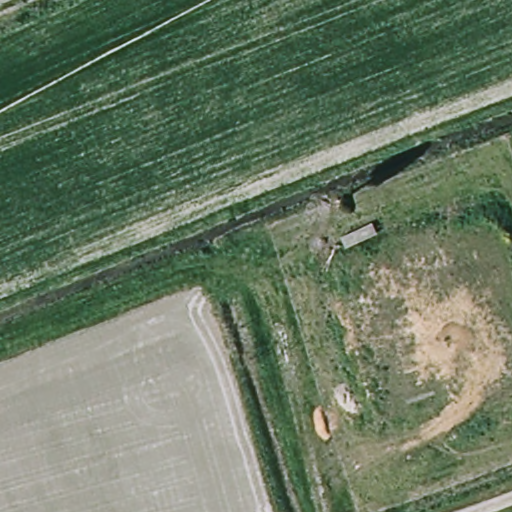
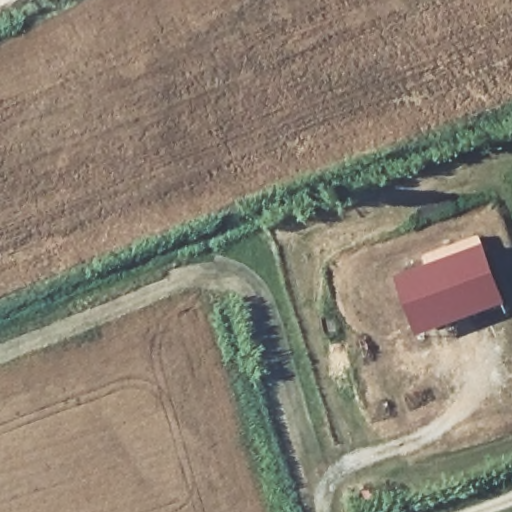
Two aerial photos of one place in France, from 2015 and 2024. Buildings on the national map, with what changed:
new [(420,339),(399,279),(430,268),(425,257),(482,236),(487,247),(509,308),(420,339)]

